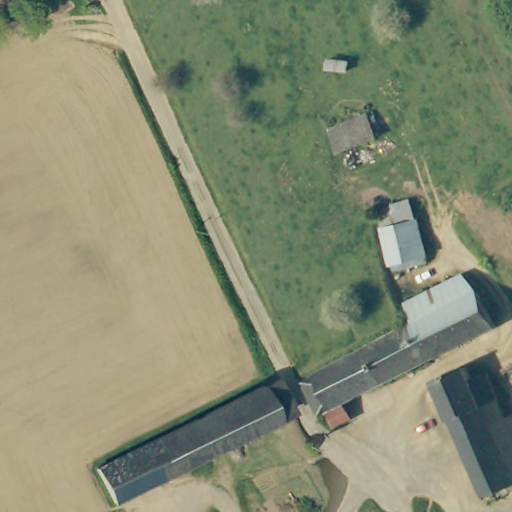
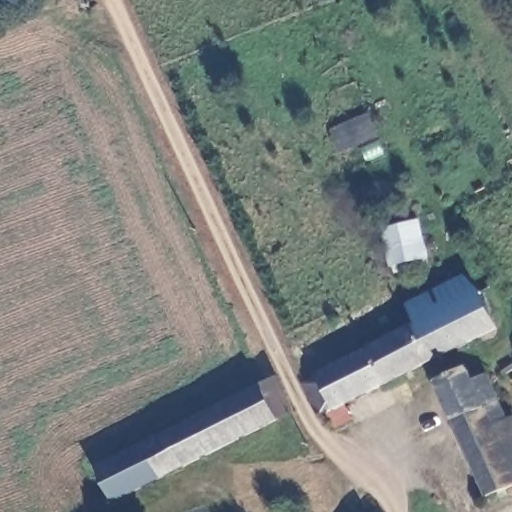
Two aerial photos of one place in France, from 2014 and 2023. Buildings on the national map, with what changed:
unchanged [(377,136),(340,152),(330,130),(367,114),(377,136)]
unchanged [(427,256),(390,265),(381,228),(417,219),(427,256)]
unchanged [(433,355),(416,321),(405,298),(452,275),(462,270),(477,288),(497,323),(433,355)]
unchanged [(335,424),(327,408),(319,412),(302,378),(416,321),(433,355),(345,399),(352,414),(335,424)]
unchanged [(487,492),(435,377),(466,363),(472,375),(487,369),(497,391),(506,415),(494,420),(512,460),(512,481),(487,492)]
unchanged [(186,465),(169,432),(261,385),(262,387),(267,385),(278,379),(292,410),(280,417),(277,418),(278,419),(186,465)]
unchanged [(494,420),(506,415),(512,412),(512,460),(494,420)]
unchanged [(186,465),(113,502),(96,468),(169,432),(186,465)]

